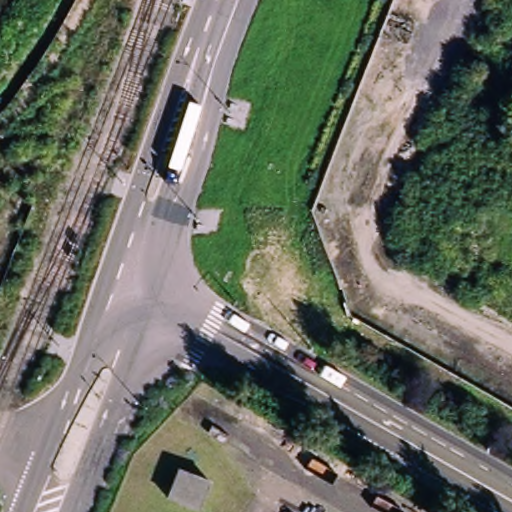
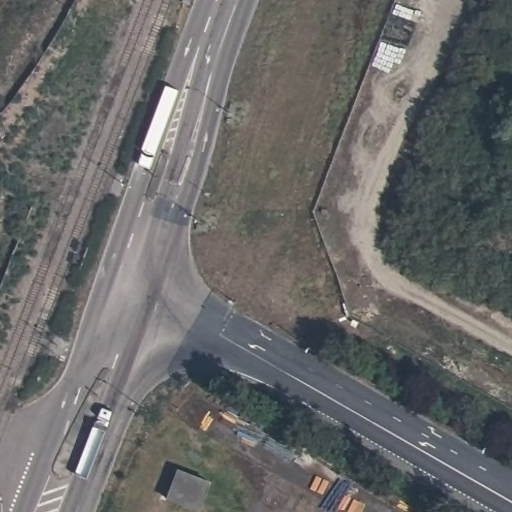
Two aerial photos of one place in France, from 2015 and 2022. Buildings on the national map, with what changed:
unchanged [(165,498),(176,470),(208,482),(196,511),(165,498)]

